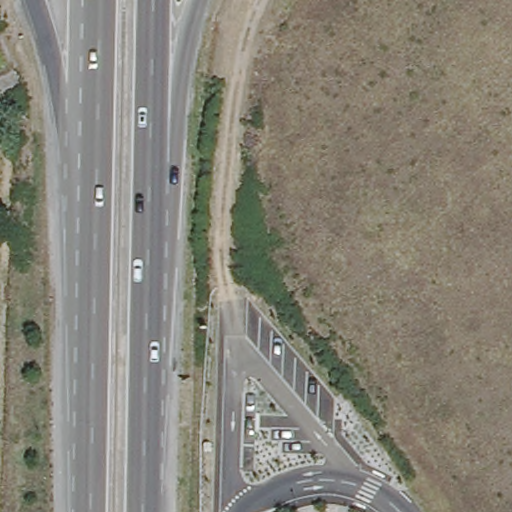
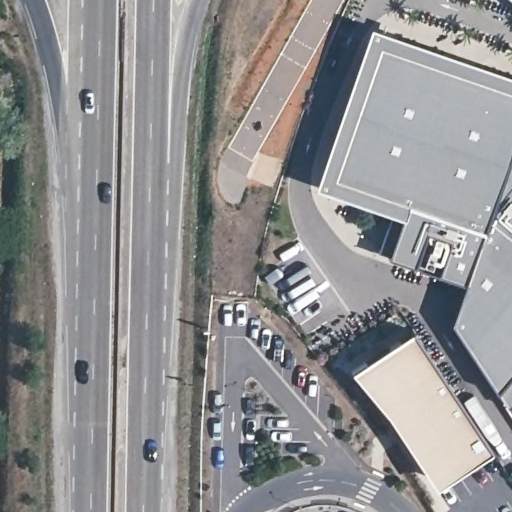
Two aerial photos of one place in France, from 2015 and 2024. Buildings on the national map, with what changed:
new [(512,82),(512,408),(460,328),(474,289),(394,262),(413,206),(334,180),(383,37),(512,82)]
new [(421,341),(495,453),(443,486),(370,375),(421,341)]

